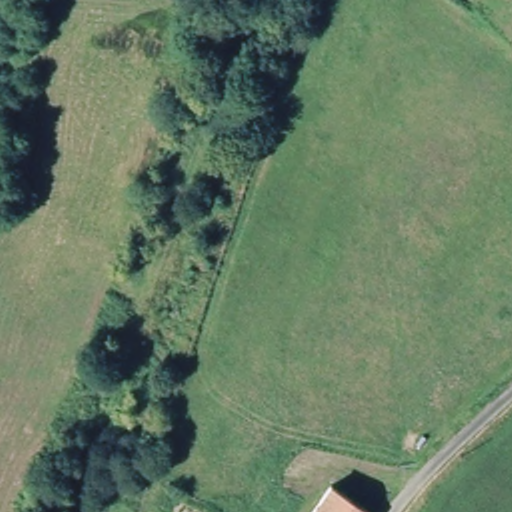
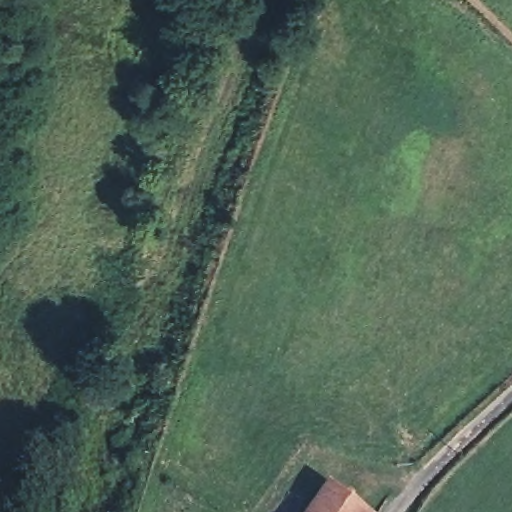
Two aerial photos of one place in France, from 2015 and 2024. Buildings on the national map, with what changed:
unchanged [(328,490),(358,512),(313,512),(328,490)]

